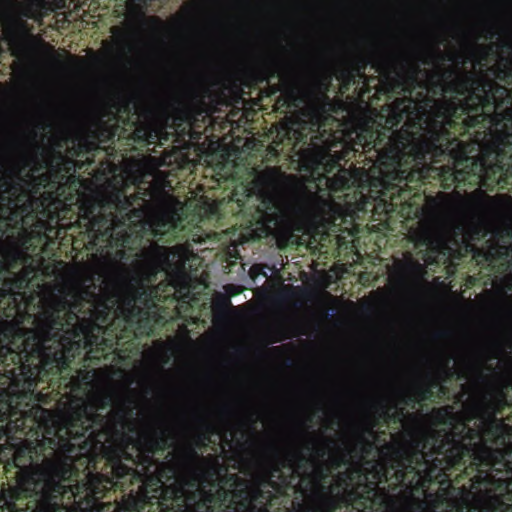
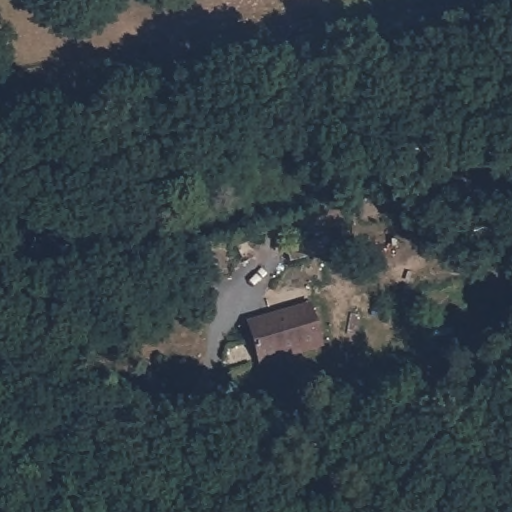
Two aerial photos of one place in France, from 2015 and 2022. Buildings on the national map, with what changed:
unchanged [(280,237),(317,232),(321,254),(284,263),(280,237)]
unchanged [(309,307),(322,349),(254,372),(246,323),(309,307)]

